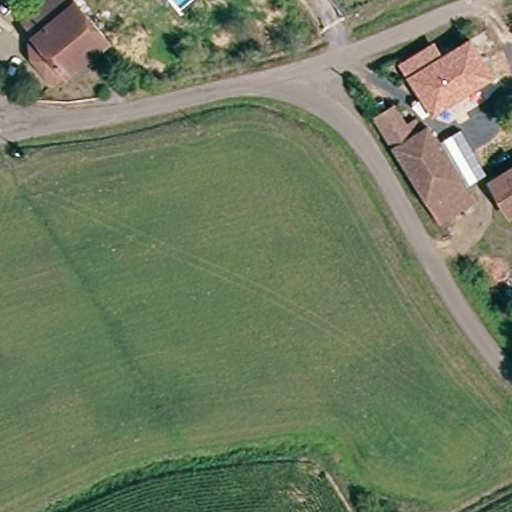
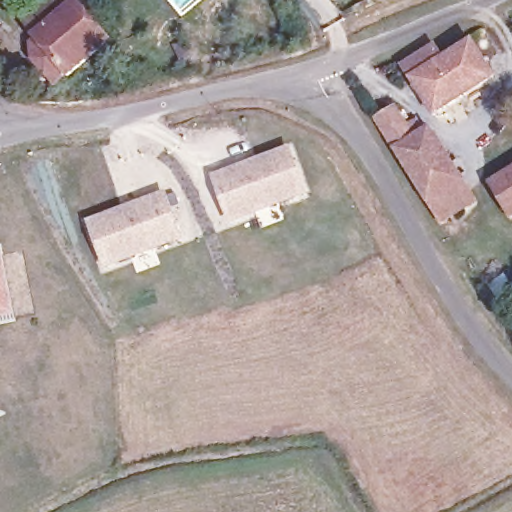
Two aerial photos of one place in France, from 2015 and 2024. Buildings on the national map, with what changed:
unchanged [(37,46),(41,42),(29,28),(62,0),(73,0),(112,49),(60,93),(40,71),(31,50),(37,46)]
unchanged [(432,120),(403,75),(430,56),(438,68),(468,48),(484,38),(498,58),(481,68),(492,83),(432,120)]
unchanged [(187,45),(193,63),(182,66),(177,47),(187,45)]
unchanged [(482,206),(447,228),(383,129),(401,117),(408,115),(421,119),(430,135),(436,132),(482,206)]
new [(296,150),(312,193),(235,220),(219,176),(296,150)]
unchanged [(494,183),(512,173),(512,218),(494,183)]
new [(165,189),(180,233),(104,260),(89,216),(165,189)]
new [(0,317),(0,252),(13,315),(0,317)]

